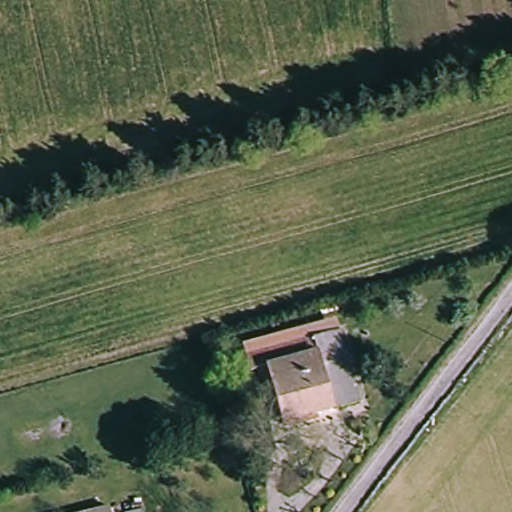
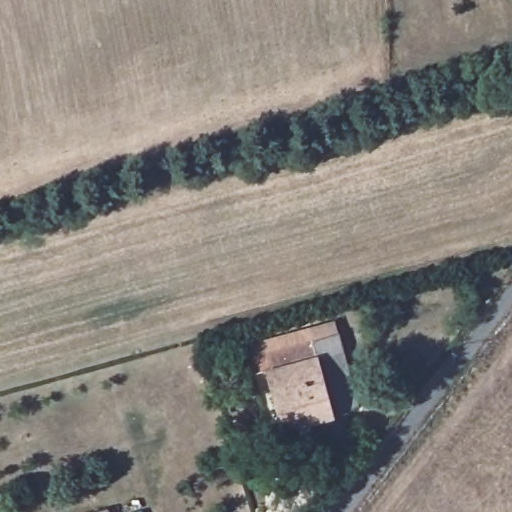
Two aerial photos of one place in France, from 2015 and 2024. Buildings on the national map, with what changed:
unchanged [(336,330),(355,408),(333,415),(278,430),(266,384),(254,387),(250,372),(243,374),(240,355),(336,330)]
unchanged [(106,512),(80,512),(104,506),(106,512)]

